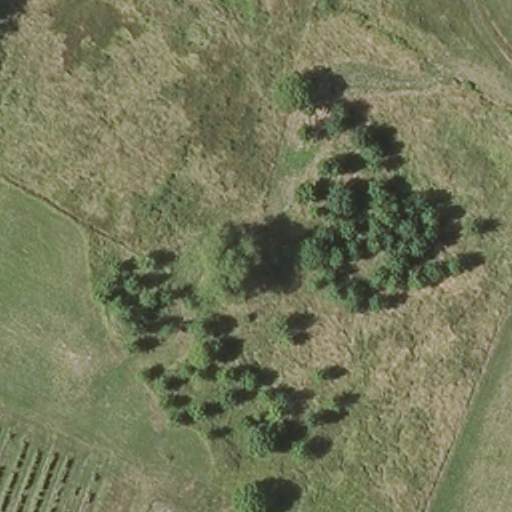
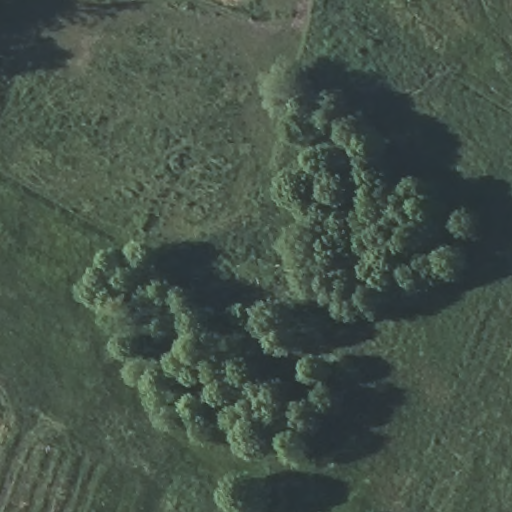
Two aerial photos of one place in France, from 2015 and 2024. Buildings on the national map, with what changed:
[]

